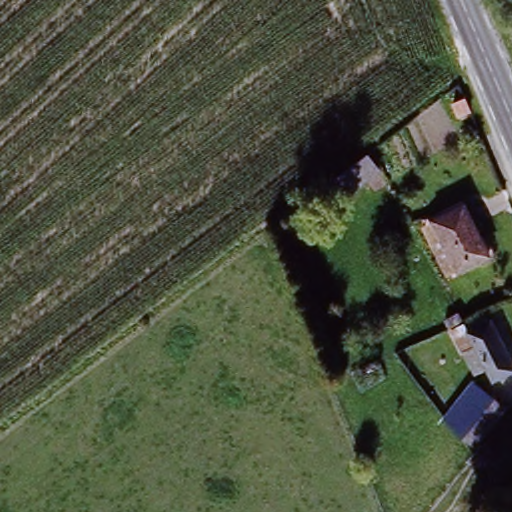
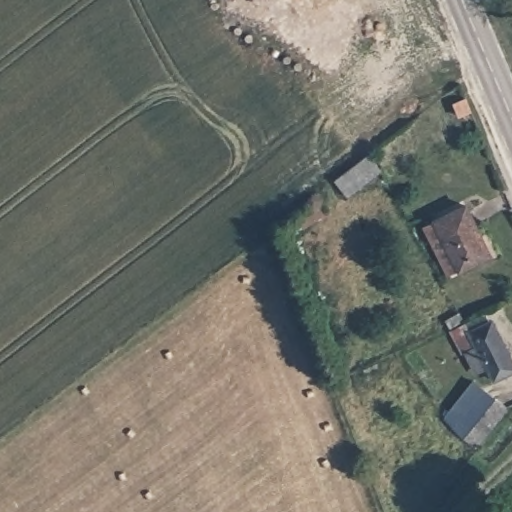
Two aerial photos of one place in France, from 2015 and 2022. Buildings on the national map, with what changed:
unchanged [(437,108),(435,101),(433,97),(447,90),(447,92),(451,102),(437,108)]
unchanged [(321,188),(312,174),(343,150),(353,164),(355,167),(324,192),(321,188)]
unchanged [(449,274),(425,223),(459,207),(482,259),(449,274)]
unchanged [(465,311),(487,362),(467,371),(443,322),(465,311)]
unchanged [(495,318),(512,355),(512,374),(492,383),(480,365),(487,362),(475,335),(472,329),(495,318)]
unchanged [(510,409),(478,450),(442,422),(472,379),(510,409)]

